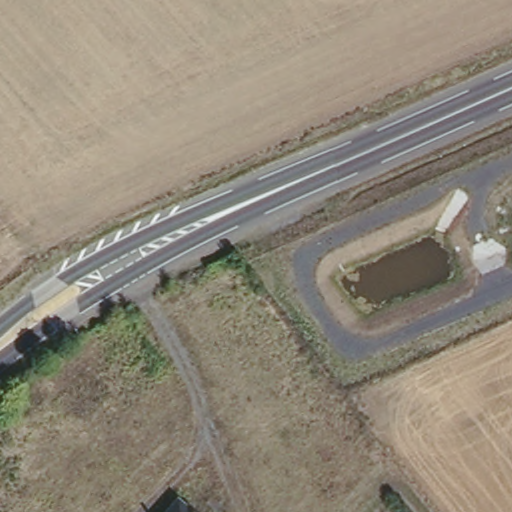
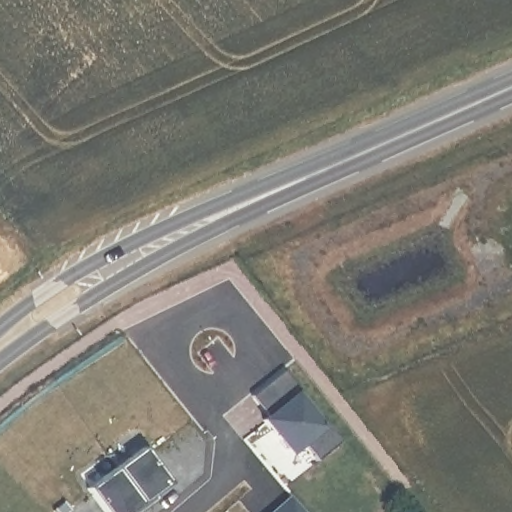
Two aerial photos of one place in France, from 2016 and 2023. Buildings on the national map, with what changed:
new [(301,390),(296,392),(322,425),(326,422),(342,440),(316,461),(304,444),(289,455),(259,420),(269,412),(251,397),(283,369),(301,390)]
new [(169,485),(154,497),(157,501),(143,512),(101,512),(86,491),(143,449),(169,485)]
new [(270,512),(290,495),(304,512),(270,512)]
demolished [(156,512),(169,498),(187,512),(156,512)]

